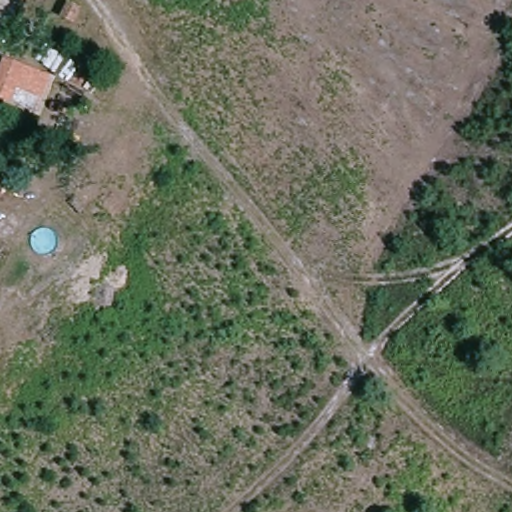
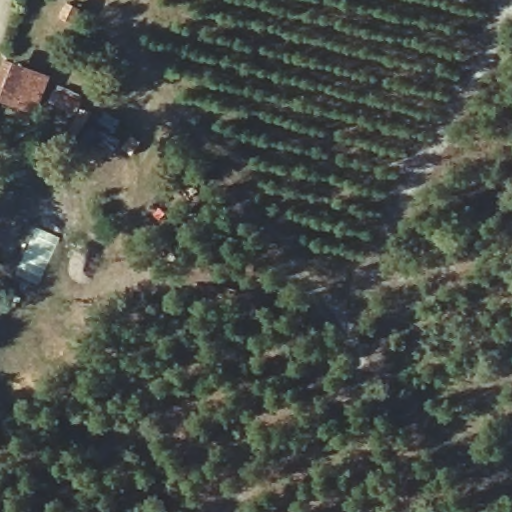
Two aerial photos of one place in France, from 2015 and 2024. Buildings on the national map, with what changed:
unchanged [(52,75),(39,113),(0,98),(0,70),(5,58),(52,75)]

